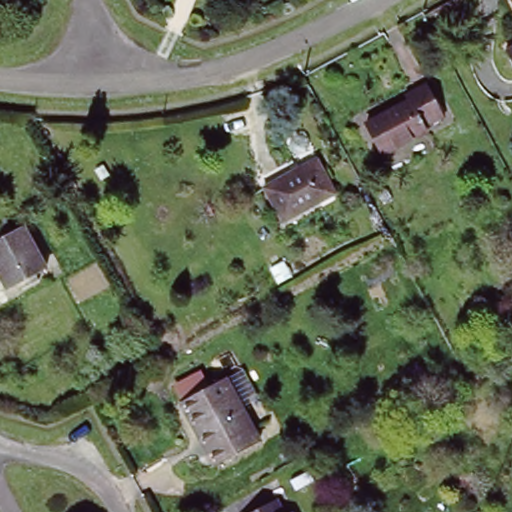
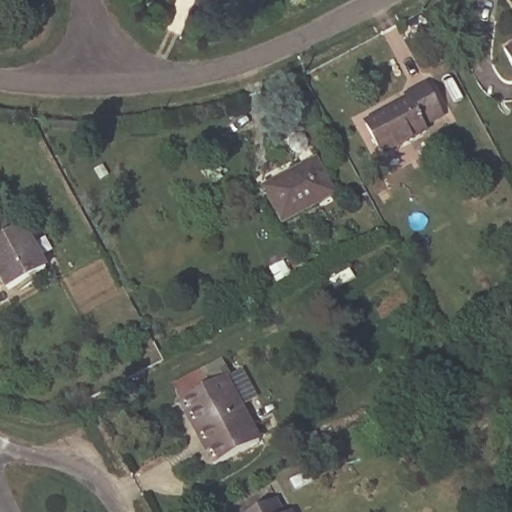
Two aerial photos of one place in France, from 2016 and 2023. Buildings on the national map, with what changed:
unchanged [(512,44),(512,57),(507,47),(512,44)]
unchanged [(365,123),(405,102),(400,92),(425,78),(442,110),(425,120),(427,124),(378,150),(365,123)]
unchanged [(320,157),(335,189),(282,217),(265,185),(320,157)]
unchanged [(50,267),(12,288),(0,266),(0,240),(28,225),(50,267)]
unchanged [(227,380),(260,441),(217,464),(184,404),(227,380)]
unchanged [(280,512),(287,509),(289,512),(280,512)]

